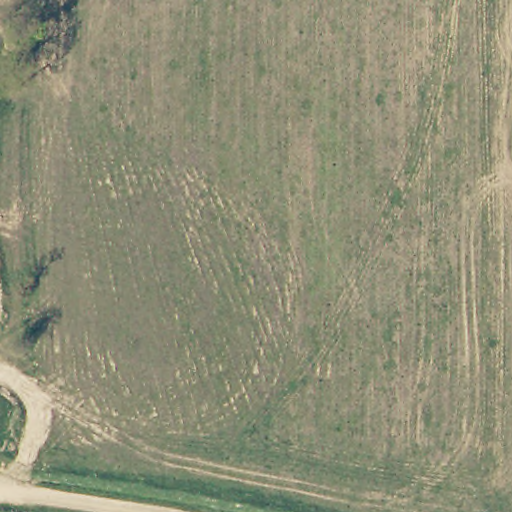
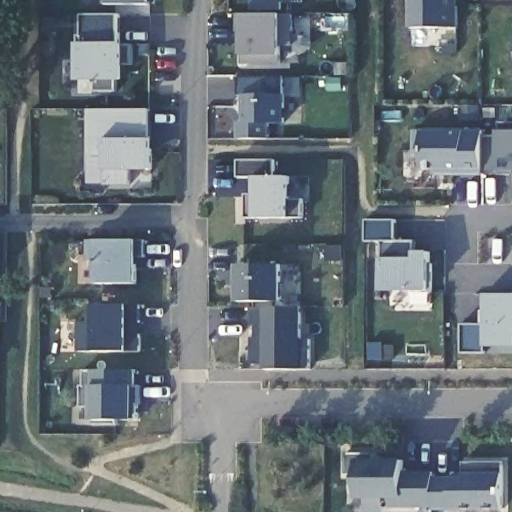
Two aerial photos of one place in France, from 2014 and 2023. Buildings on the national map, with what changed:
new [(150,0),(150,5),(108,5),(108,0),(150,0)]
new [(409,29),(409,0),(458,0),(457,29),(409,29)]
new [(77,43),(83,43),(83,13),(120,15),(120,42),(125,43),(125,46),(133,45),(133,66),(124,67),(125,81),(116,81),(117,91),(95,91),(96,81),(75,81),(77,43)]
new [(294,14),(294,47),(282,47),(281,64),(241,64),(242,55),(241,33),(236,32),(236,13),(241,13),(294,14)]
new [(283,77),(284,123),(269,123),(269,139),(238,139),(238,123),(244,123),(245,95),(237,95),(237,76),(283,77)]
new [(149,109),(149,140),(142,140),(142,149),(150,149),(150,170),(129,170),(129,185),(103,185),(103,156),(87,156),(86,110),(149,109)]
new [(498,174),(436,175),(436,171),(421,170),(422,153),(413,152),(413,130),(421,130),(482,130),(483,136),(497,137),(497,130),(500,130),(499,122),(512,122),(512,171),(499,171),(498,174)]
new [(276,159),(275,176),(290,176),(289,199),(302,199),(303,218),(245,219),(245,194),(254,195),(255,178),(237,177),(237,160),(276,159)]
new [(396,220),(395,240),(415,240),(415,250),(429,251),(430,291),(427,291),(428,305),(412,305),(411,291),(381,290),(381,258),(381,240),(365,241),(365,219),(396,220)]
new [(138,284),(97,285),(98,261),(87,261),(86,240),(138,238),(138,284)]
new [(283,302),(236,302),(237,263),(282,262),(283,302)]
new [(483,324),(483,294),(512,294),(512,346),(484,346),(484,353),(460,353),(460,324),(483,324)]
new [(140,351),(79,352),(79,322),(89,322),(89,305),(140,305),(140,323),(140,334),(140,351)]
new [(265,371),(264,366),(250,367),(249,337),(256,338),(257,326),(251,326),(250,305),(301,306),(302,339),(310,338),(310,370),(265,371)]
new [(135,370),(134,387),(141,387),(142,406),(137,405),(137,419),(117,419),(117,424),(92,424),(92,405),(81,405),(80,386),(84,385),(84,370),(135,370)]
new [(358,475),(345,474),(346,454),(375,454),(376,459),(404,459),(404,478),(464,478),(464,462),(502,463),(502,473),(504,473),(504,509),(452,509),(389,507),(391,498),(357,498),(358,475)]

